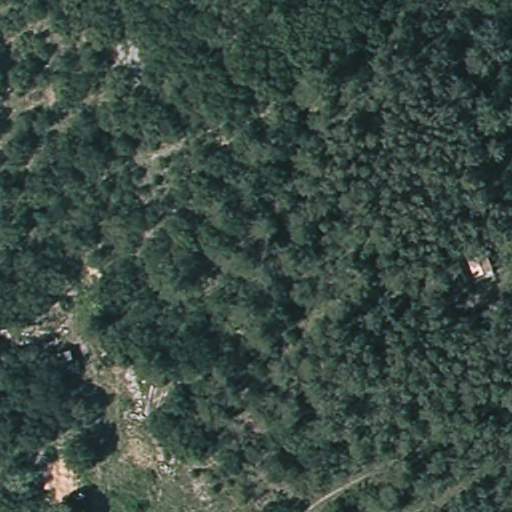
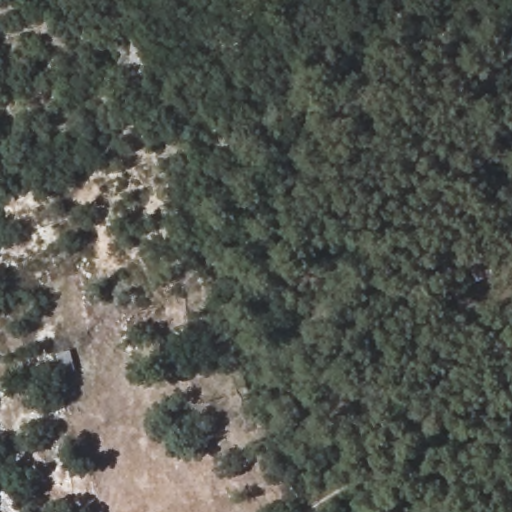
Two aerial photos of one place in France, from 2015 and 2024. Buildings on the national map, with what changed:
unchanged [(496,266),(475,273),(468,257),(491,249),(496,266)]
unchanged [(77,370),(60,372),(58,350),(74,349),(77,370)]

